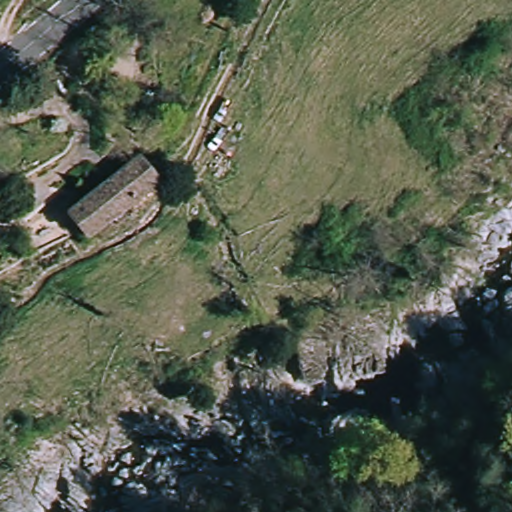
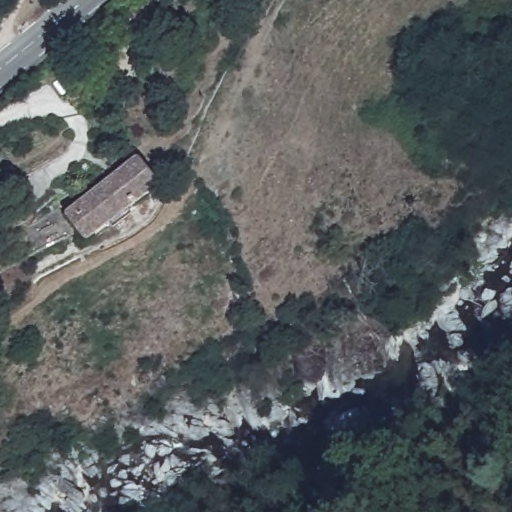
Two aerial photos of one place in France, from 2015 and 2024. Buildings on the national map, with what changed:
unchanged [(69,211),(144,165),(156,188),(83,235),(69,211)]

